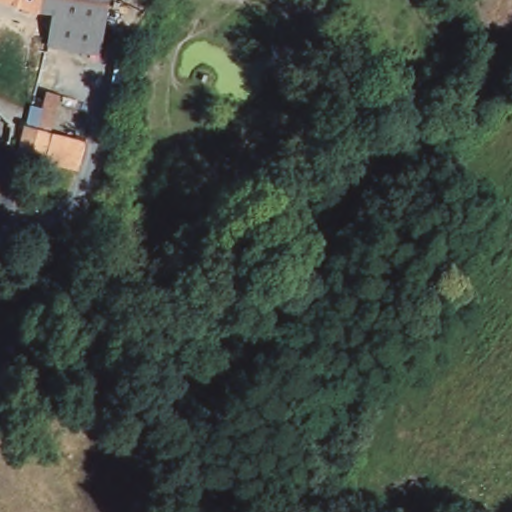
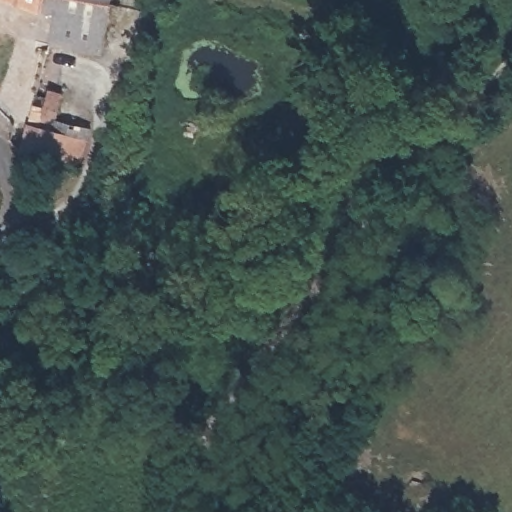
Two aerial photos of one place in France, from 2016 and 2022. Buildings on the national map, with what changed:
unchanged [(37,7),(31,5),(15,0),(39,0),(37,7)]
unchanged [(106,21),(75,16),(51,11),(37,7),(39,0),(111,0),(106,21)]
unchanged [(106,21),(101,55),(69,52),(75,16),(106,21)]
unchanged [(61,96),(65,97),(45,157),(20,147),(29,122),(38,126),(49,92),(61,96)]

